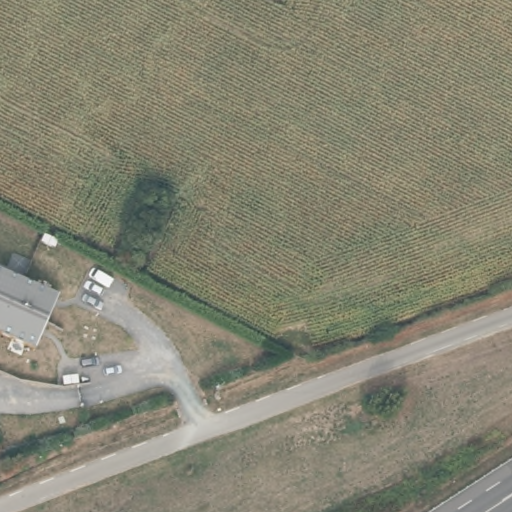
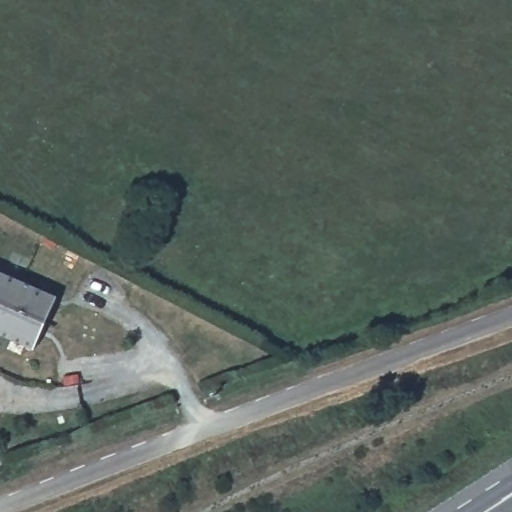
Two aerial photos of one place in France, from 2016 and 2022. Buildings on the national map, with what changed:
unchanged [(51,297),(29,347),(0,334),(0,273),(51,297)]

